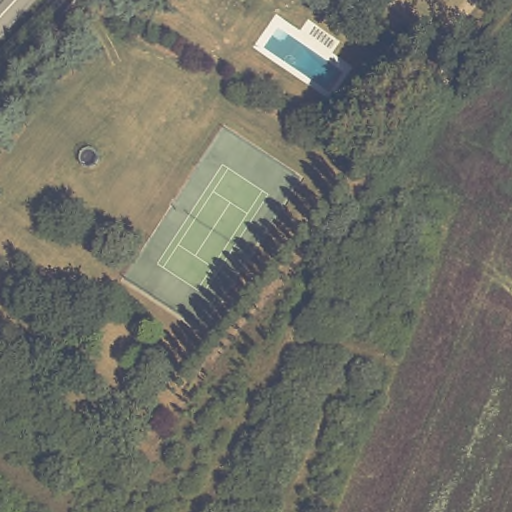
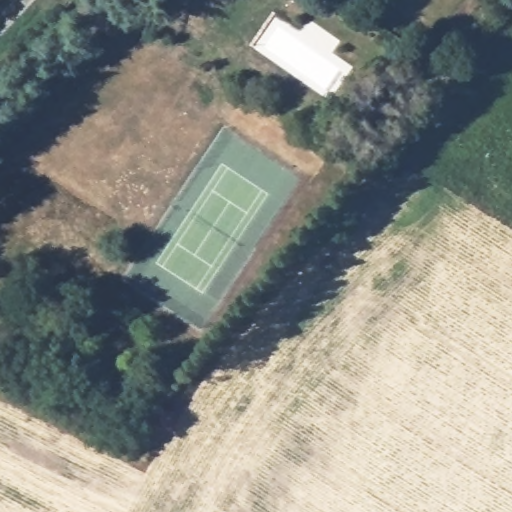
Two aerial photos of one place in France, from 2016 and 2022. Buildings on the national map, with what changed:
unchanged [(434,92),(433,92),(422,85),(430,73),(438,78),(441,81),(434,92)]

